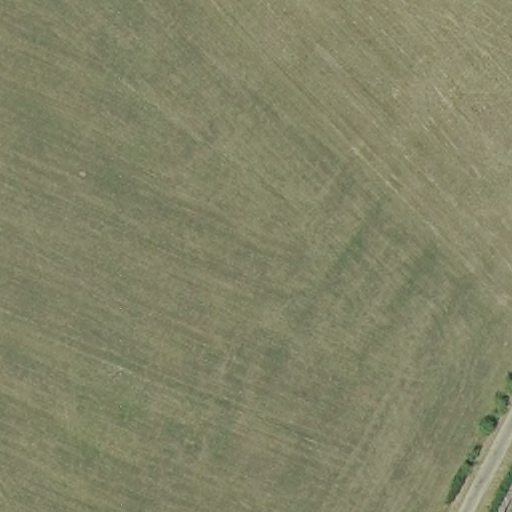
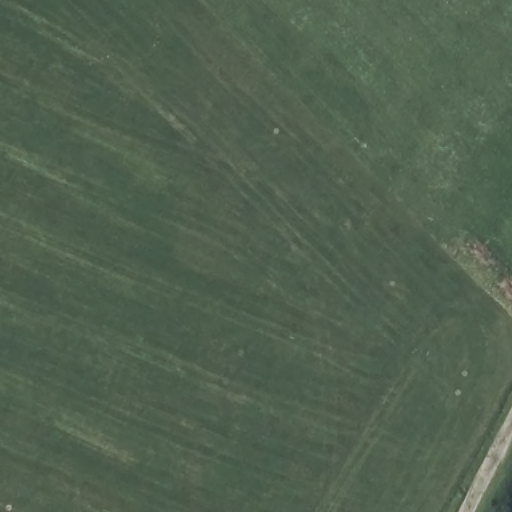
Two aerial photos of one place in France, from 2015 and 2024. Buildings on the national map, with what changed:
[]

